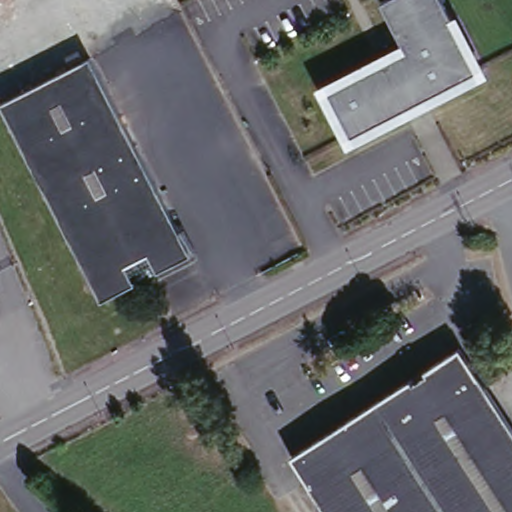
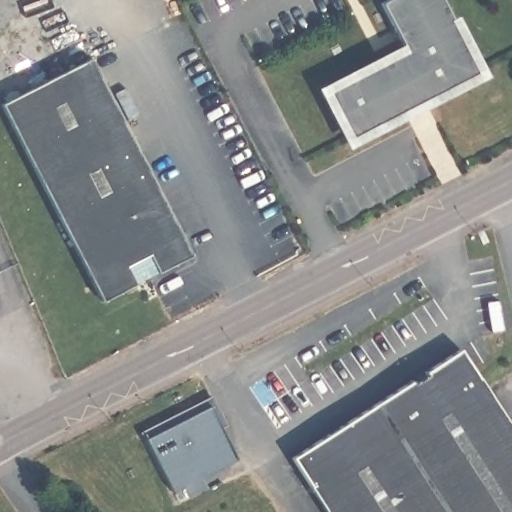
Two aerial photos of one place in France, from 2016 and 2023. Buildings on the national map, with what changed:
unchanged [(406,58),(381,12),(404,0),(439,0),(481,82),(426,111),(428,115),(408,125),(406,121),(351,149),(325,100),(406,58)]
unchanged [(192,253),(101,300),(0,111),(0,109),(87,62),(192,253)]
unchanged [(296,447),(468,352),(512,427),(512,512),(333,512),(309,468),(296,447)]
new [(207,404),(233,457),(168,488),(143,435),(207,404)]

